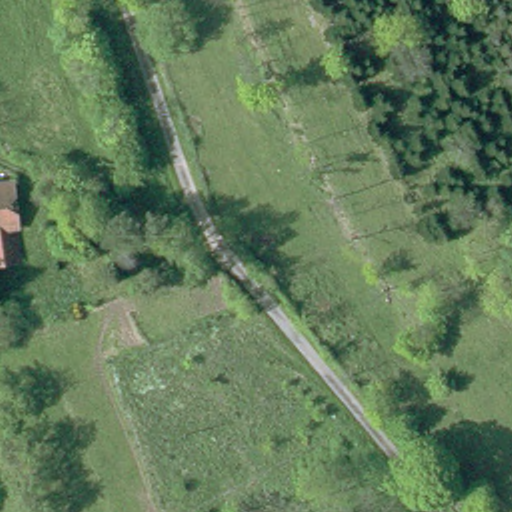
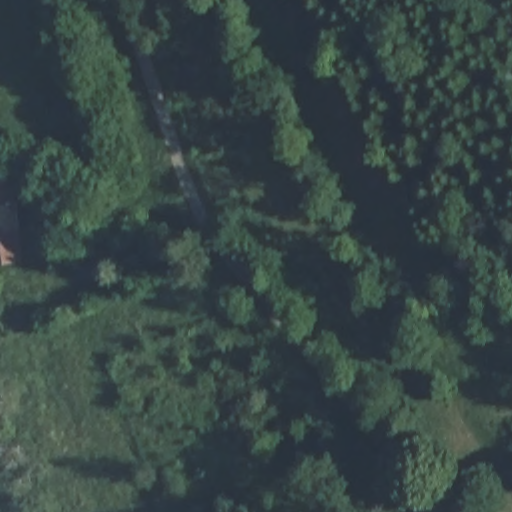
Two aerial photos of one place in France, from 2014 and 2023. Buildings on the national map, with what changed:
unchanged [(0,180),(12,179),(17,223),(12,223),(14,233),(15,256),(0,257),(0,180)]

